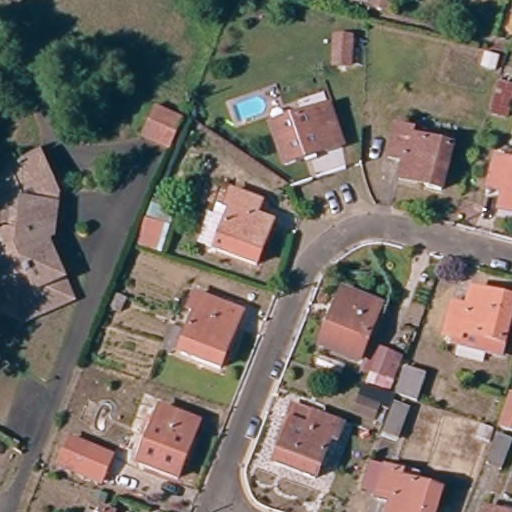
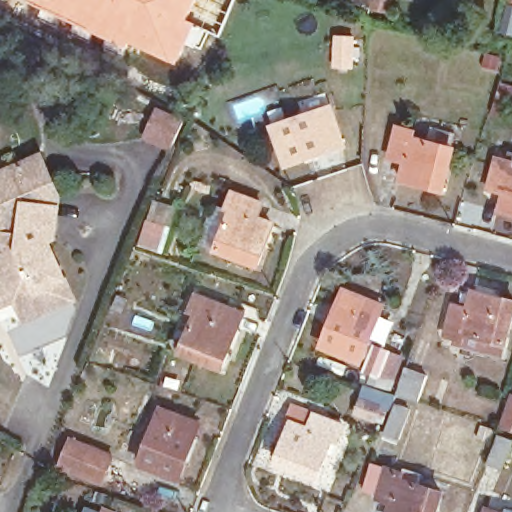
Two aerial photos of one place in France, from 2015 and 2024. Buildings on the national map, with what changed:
new [(196,27),(180,66),(130,44),(129,49),(31,0),(235,0),(219,37),(196,27)]
unchanged [(375,6),(377,0),(390,0),(388,9),(375,6)]
unchanged [(509,1),(510,0),(512,0),(512,2),(509,1)]
unchanged [(351,66),(325,66),(327,38),(353,41),(351,66)]
unchanged [(508,121),(496,116),(508,81),(512,82),(512,108),(508,121)]
unchanged [(341,142),(326,149),(324,145),(304,152),(305,156),(288,160),(277,123),(330,107),(341,142)]
unchanged [(159,112),(187,124),(183,134),(176,150),(149,139),(155,124),(159,112)]
unchanged [(459,182),(441,176),(442,172),(418,166),(422,153),(405,148),(414,120),(431,124),(430,129),(470,140),(459,182)]
unchanged [(58,236),(51,239),(77,300),(39,315),(29,293),(17,299),(0,263),(0,176),(47,156),(64,192),(58,236)]
unchanged [(499,192),(508,163),(512,164),(512,195),(499,192)]
unchanged [(259,212),(269,216),(262,237),(266,238),(257,256),(217,240),(232,203),(225,200),(232,184),(265,196),(259,212)]
unchanged [(509,207),(512,199),(512,208),(509,207)]
new [(177,207),(162,255),(136,247),(152,200),(177,207)]
unchanged [(231,342),(234,343),(226,362),(186,346),(201,307),(196,304),(201,290),(246,306),(231,342)]
unchanged [(361,362),(322,347),(329,330),(334,332),(343,310),(338,308),(345,292),(381,306),(361,362)]
unchanged [(500,359),(459,350),(461,342),(446,337),(454,309),(470,312),(474,300),(494,305),(496,298),(512,303),(512,315),(500,359)]
unchanged [(390,377),(374,372),(382,348),(397,352),(390,377)]
unchanged [(426,377),(420,405),(396,397),(406,370),(426,377)]
unchanged [(383,401),(378,415),(359,410),(364,395),(383,401)]
unchanged [(496,429),(508,396),(512,397),(512,434),(496,429)]
unchanged [(338,439),(331,437),(314,476),(276,461),(284,442),(279,440),(295,403),(313,412),(343,423),(338,439)]
unchanged [(194,443),(190,442),(183,462),(185,463),(177,482),(141,467),(162,414),(199,427),(194,443)]
unchanged [(509,441),(499,471),(486,466),(496,437),(509,441)]
unchanged [(101,485),(62,468),(71,444),(110,460),(101,485)]
unchanged [(430,512),(402,512),(387,507),(390,496),(375,491),(385,462),(399,466),(397,472),(437,484),(430,512)]
unchanged [(488,501),(512,508),(512,512),(485,512),(488,501)]

